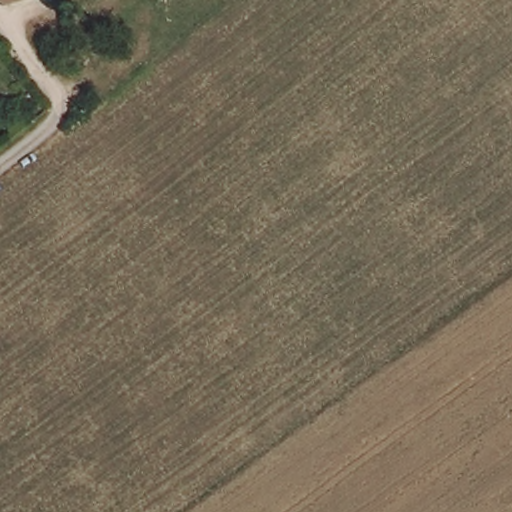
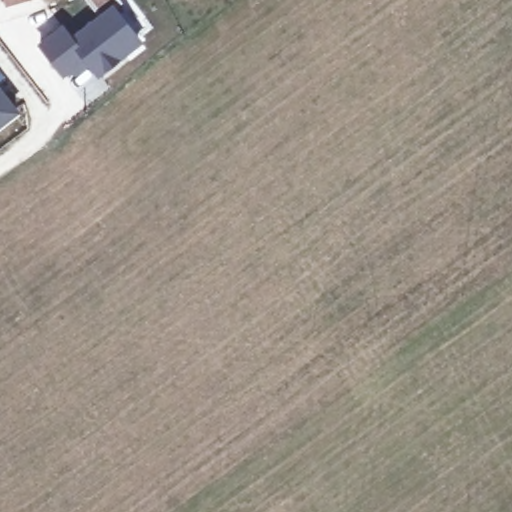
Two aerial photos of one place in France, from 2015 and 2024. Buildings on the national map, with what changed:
unchanged [(8,0),(28,0),(10,6),(8,0)]
new [(71,31),(98,11),(112,0),(119,0),(142,36),(95,76),(88,67),(75,78),(73,76),(72,77),(69,73),(63,78),(35,41),(62,20),(71,31)]
new [(90,0),(112,0),(98,11),(90,0)]
new [(0,122),(0,90),(16,110),(0,122)]

